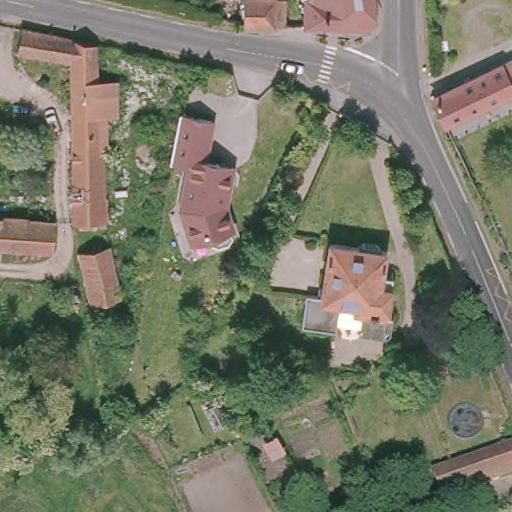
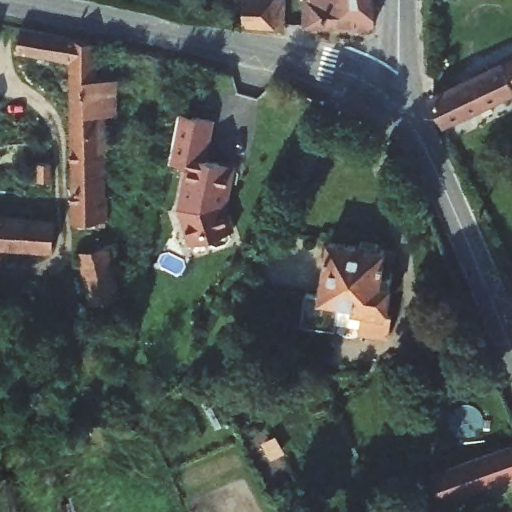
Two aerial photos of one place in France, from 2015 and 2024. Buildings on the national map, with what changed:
unchanged [(241,0),(277,0),(277,14),(283,14),(283,21),(240,18),(241,0)]
unchanged [(379,17),(379,19),(373,27),(314,23),(308,23),(308,0),(378,0),(379,17)]
unchanged [(70,218),(72,60),(17,47),(18,25),(38,29),(98,39),(98,50),(97,67),(97,71),(117,74),(116,104),(116,107),(103,107),(97,107),(96,156),(95,208),(99,209),(99,221),(97,220),(70,218)]
unchanged [(438,120),(426,97),(512,55),(512,85),(498,91),(438,120)]
unchanged [(216,121),(208,166),(234,169),(230,209),(236,233),(214,247),(191,248),(179,213),(184,173),(172,167),(181,117),(216,121)]
unchanged [(53,216),(51,245),(1,242),(0,251),(0,212),(53,216)]
unchanged [(392,331),(384,337),(365,333),(358,332),(360,321),(339,317),(336,333),(304,331),(308,299),(321,300),(330,240),(361,244),(364,238),(382,241),(387,248),(381,283),(393,285),(388,311),(396,313),(392,331)]
unchanged [(123,297),(87,303),(78,251),(113,242),(123,297)]
unchanged [(448,364),(421,373),(412,346),(439,337),(448,364)]
unchanged [(433,471),(449,465),(512,439),(512,471),(459,493),(444,500),(436,478),(433,471)]

